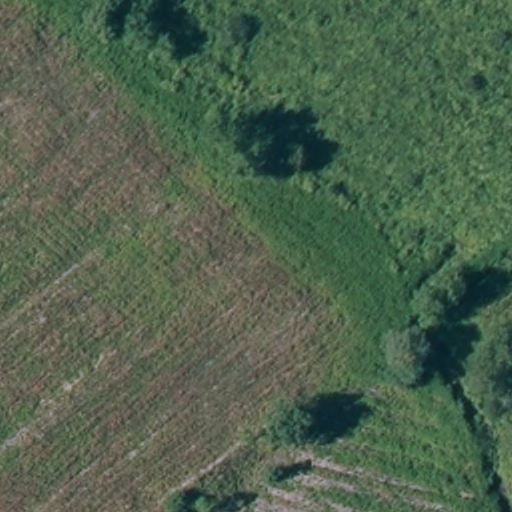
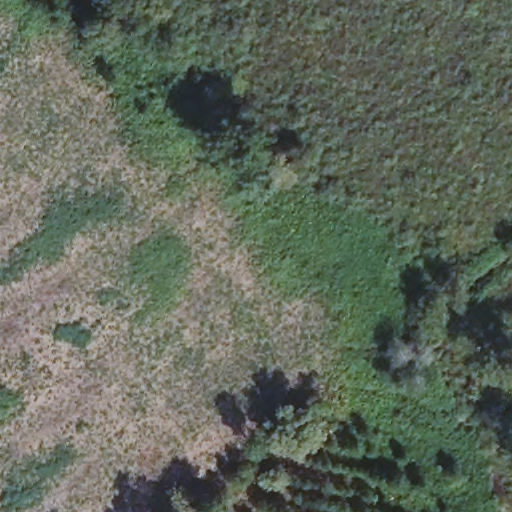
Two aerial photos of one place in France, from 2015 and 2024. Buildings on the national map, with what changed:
[]

